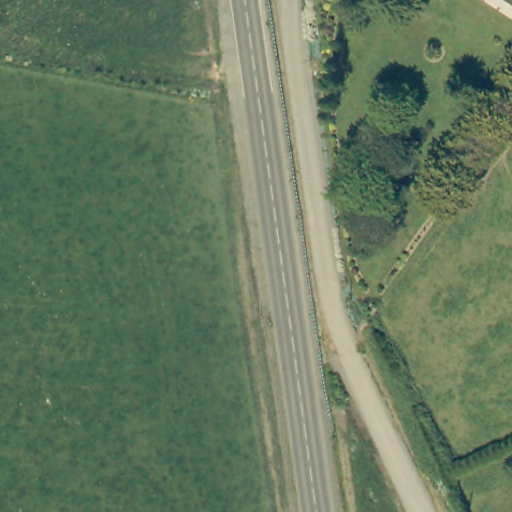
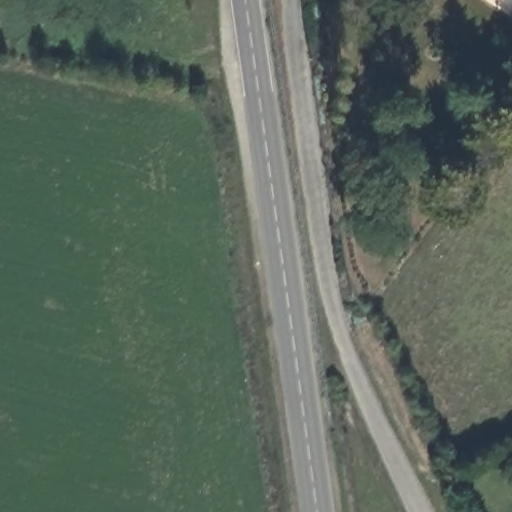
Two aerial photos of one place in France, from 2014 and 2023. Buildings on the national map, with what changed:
unchanged [(512,0),(512,3),(507,0),(512,0)]

